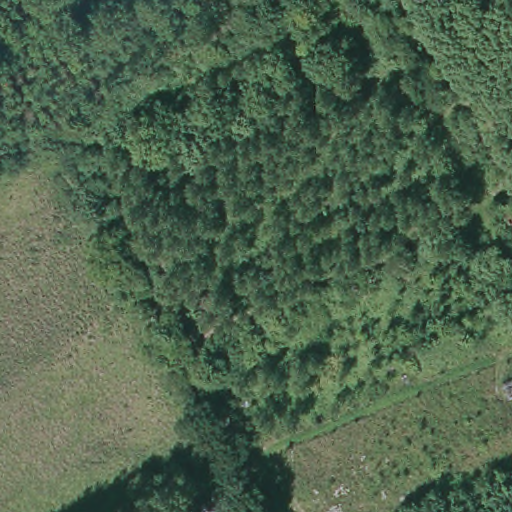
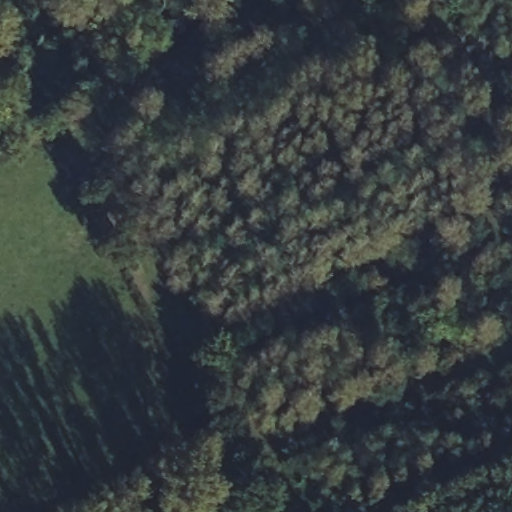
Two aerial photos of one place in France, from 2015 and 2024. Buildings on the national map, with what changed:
unchanged [(210,475),(225,501),(207,512),(206,512),(192,485),(210,475)]

